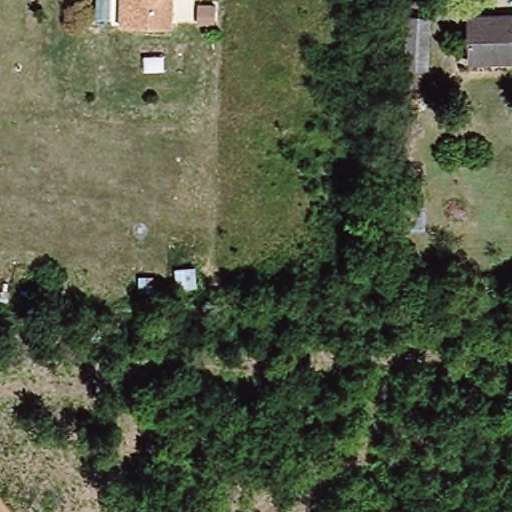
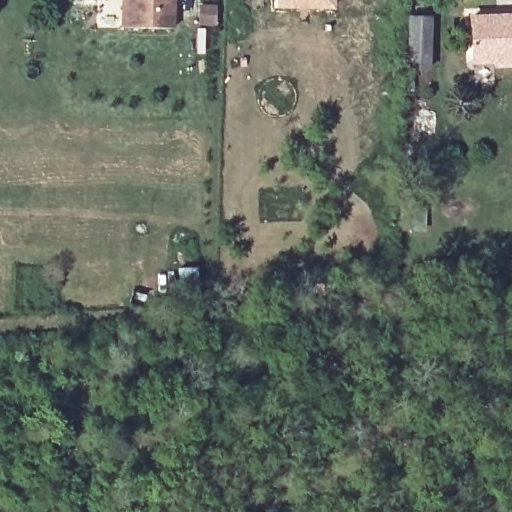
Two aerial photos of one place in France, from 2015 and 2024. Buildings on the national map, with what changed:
unchanged [(116,0),(167,0),(165,30),(122,29),(115,29),(116,0)]
new [(273,0),(332,0),(331,10),(273,9),(273,0)]
unchanged [(512,16),(512,72),(467,75),(464,20),(512,16)]
unchanged [(426,24),(427,70),(405,70),(405,24),(426,24)]

